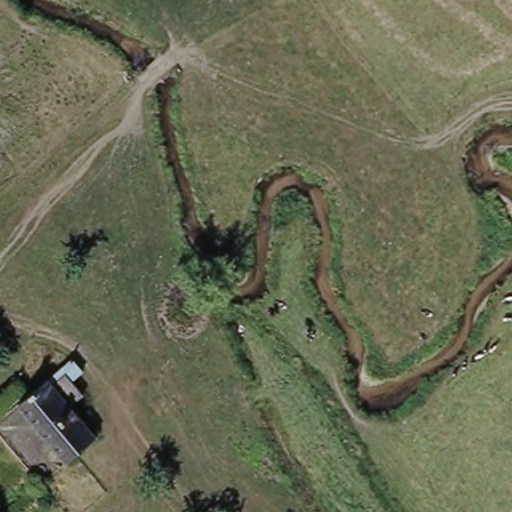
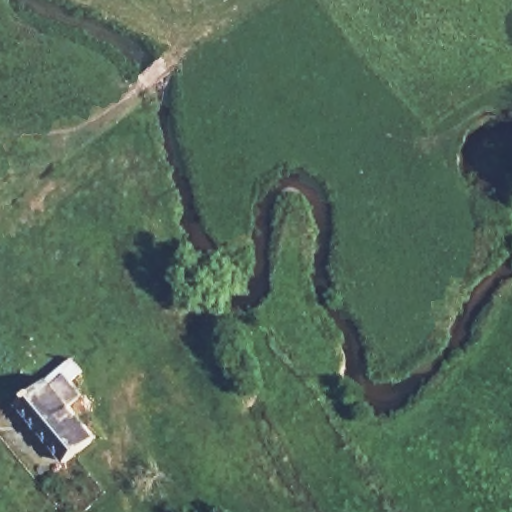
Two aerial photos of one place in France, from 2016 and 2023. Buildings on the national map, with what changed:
unchanged [(47,382),(48,382),(71,360),(82,373),(71,383),(84,397),(70,409),(92,437),(65,461),(19,407),(47,382)]

